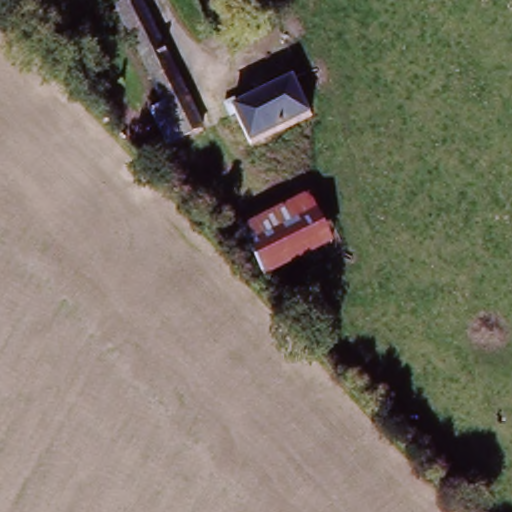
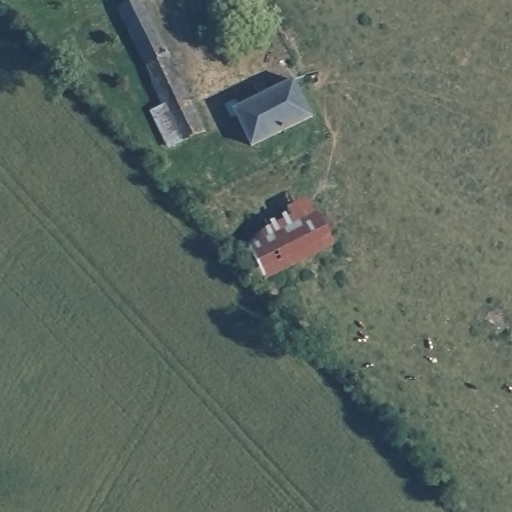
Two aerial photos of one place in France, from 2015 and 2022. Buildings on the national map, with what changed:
unchanged [(178,138),(113,2),(119,0),(148,0),(207,126),(178,138)]
unchanged [(241,152),(222,112),(295,80),(314,120),(241,152)]
unchanged [(263,276),(242,236),(310,203),(330,245),(263,276)]

